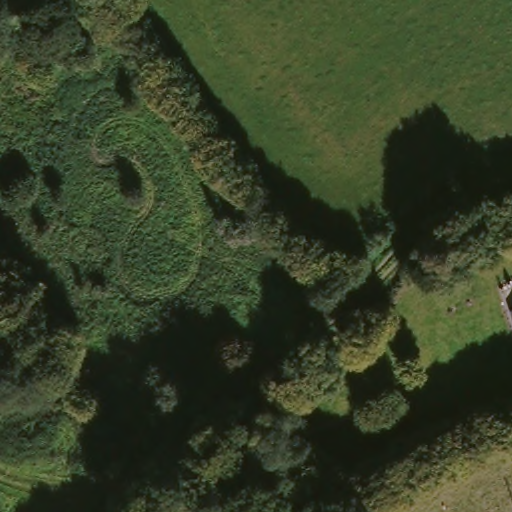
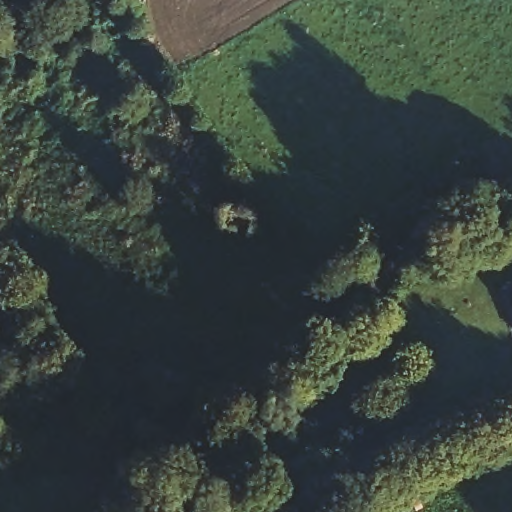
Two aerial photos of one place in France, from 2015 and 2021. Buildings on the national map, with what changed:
unchanged [(503,315),(512,313),(512,344),(511,344),(503,315)]

